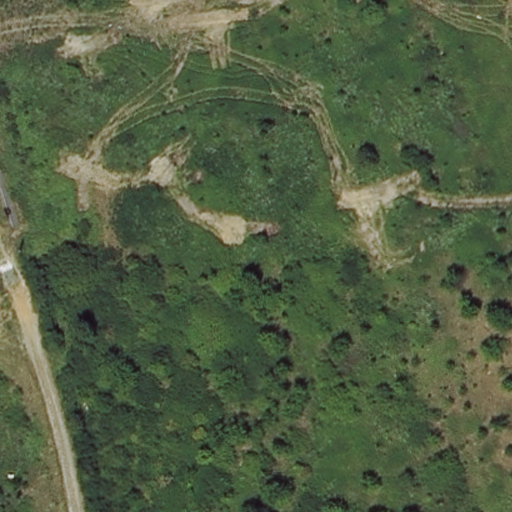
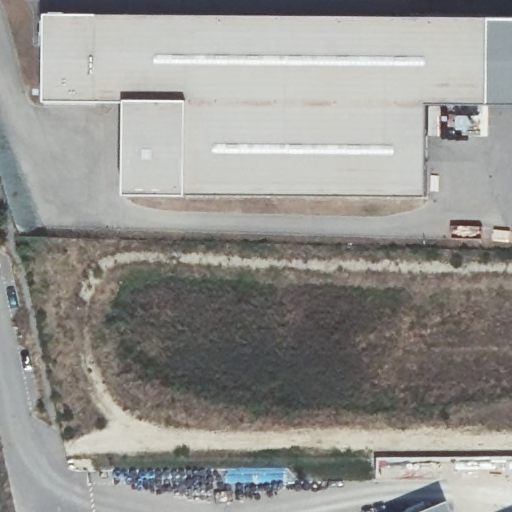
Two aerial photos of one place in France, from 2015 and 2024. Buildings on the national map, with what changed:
new [(512,19),(512,104),(430,103),(426,197),(185,196),(125,194),(127,100),(45,100),(45,16),(512,19)]
new [(448,512),(433,512),(445,507),(448,512)]

